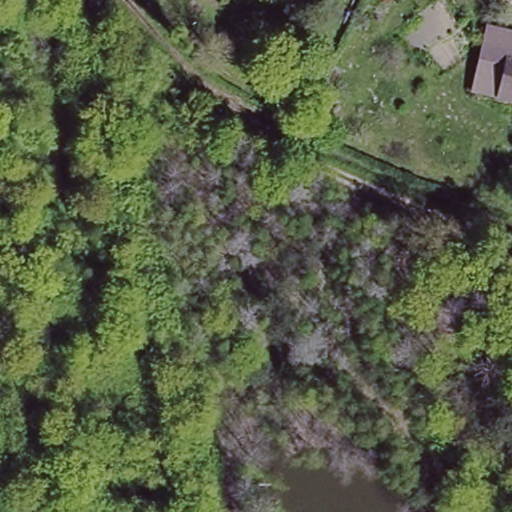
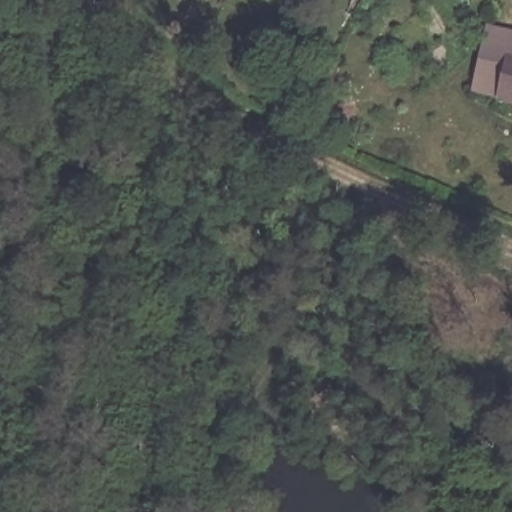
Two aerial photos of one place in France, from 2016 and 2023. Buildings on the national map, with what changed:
unchanged [(512,36),(512,100),(471,91),(483,30),(512,36)]
unchanged [(308,76),(300,90),(274,75),(281,62),(308,76)]

